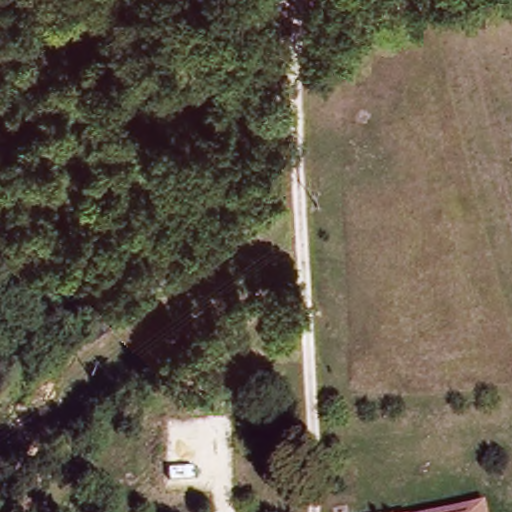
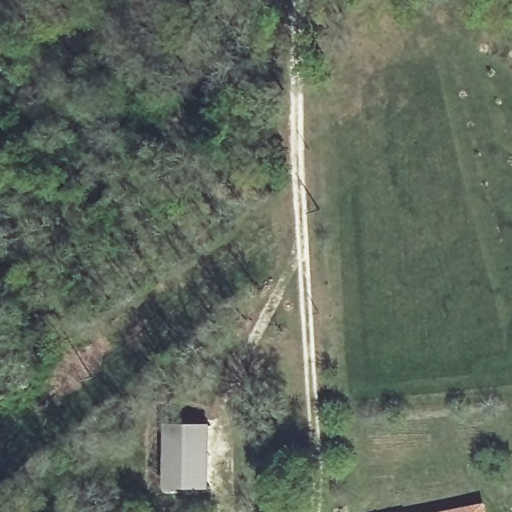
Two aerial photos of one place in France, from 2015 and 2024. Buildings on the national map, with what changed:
new [(212,423),(212,487),(166,488),(167,424),(212,423)]
unchanged [(491,512),(452,512),(490,505),(491,512)]

